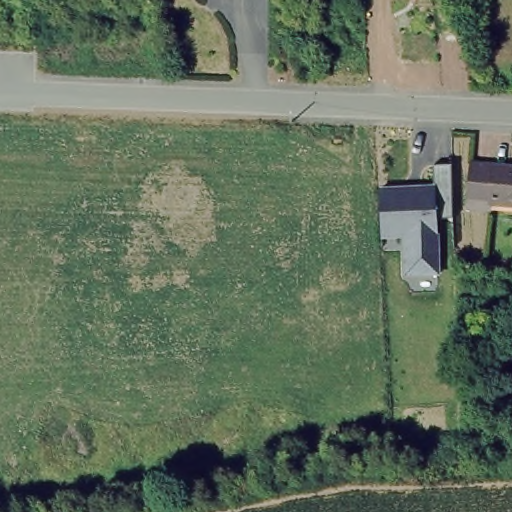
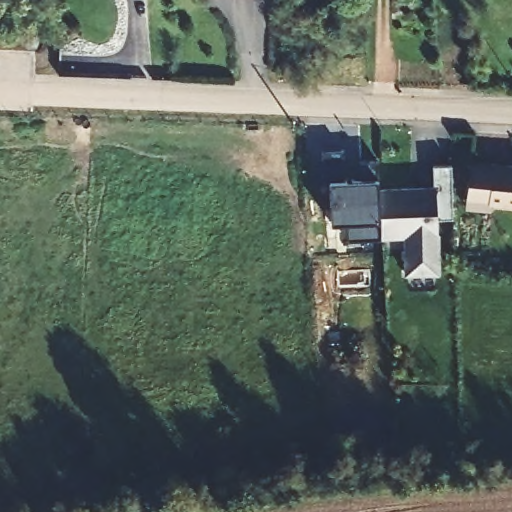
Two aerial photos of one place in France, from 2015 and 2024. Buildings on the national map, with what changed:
new [(381,220),(382,239),(348,241),(346,221),(331,222),(329,181),(323,182),(321,151),(344,151),(344,181),(361,180),(361,162),(378,162),(379,180),(380,188),(381,220)]
unchanged [(512,165),(512,205),(466,202),(468,162),(512,165)]
unchanged [(450,167),(451,219),(439,219),(441,275),(402,277),(401,240),(382,240),(380,188),(432,185),(431,166),(450,167)]

